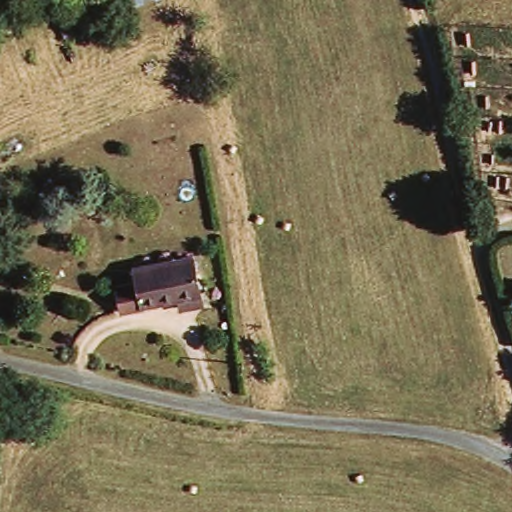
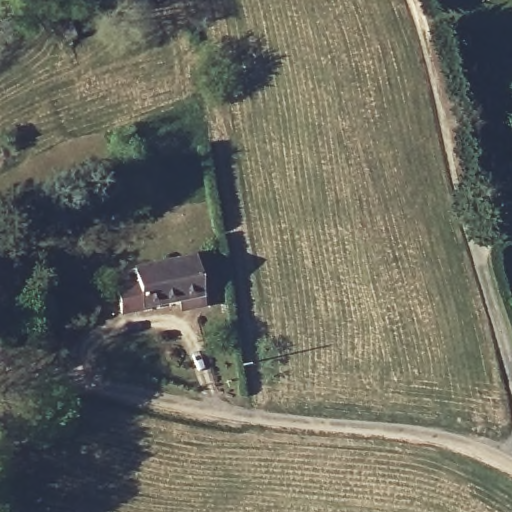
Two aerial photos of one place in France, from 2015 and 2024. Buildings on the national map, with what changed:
unchanged [(182,307),(179,295),(148,302),(144,306),(119,312),(113,286),(136,281),(134,266),(193,253),(204,302),(182,307)]

